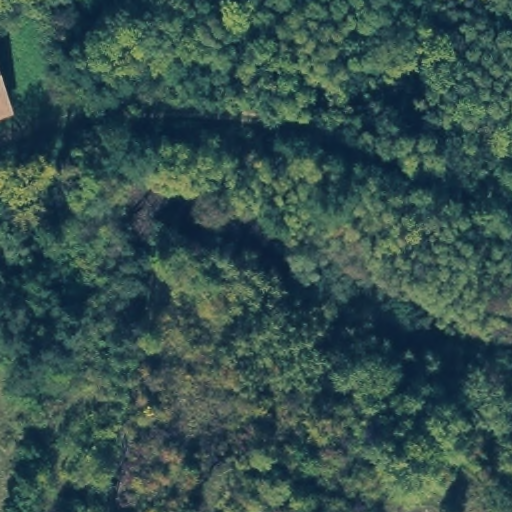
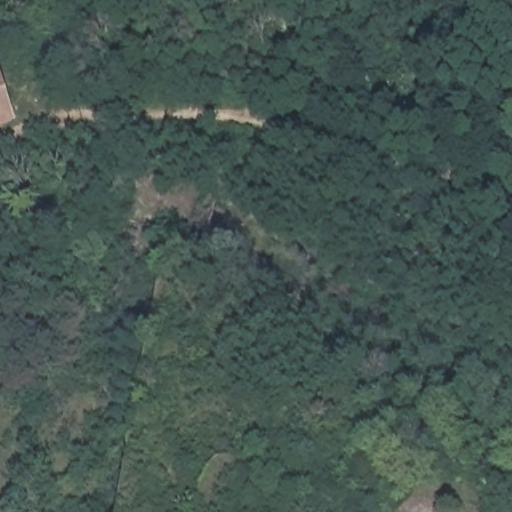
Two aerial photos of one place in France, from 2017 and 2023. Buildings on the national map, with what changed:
unchanged [(15,112),(0,117),(0,69),(15,112)]

